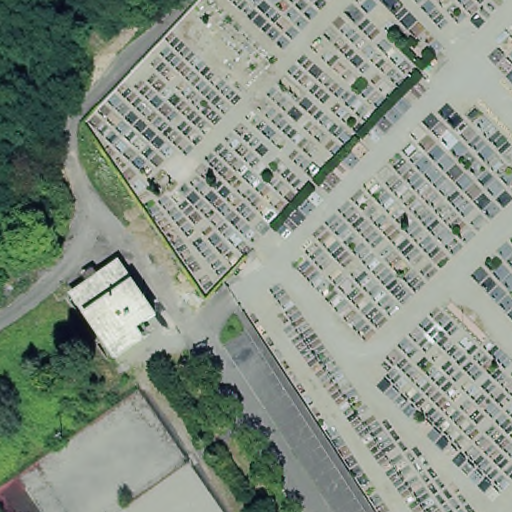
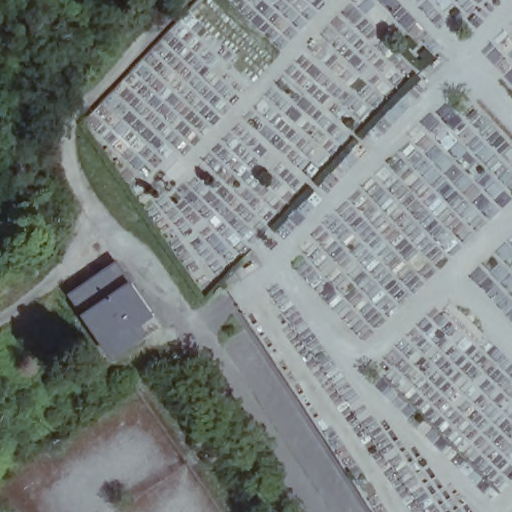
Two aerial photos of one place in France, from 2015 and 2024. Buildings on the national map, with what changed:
unchanged [(117,261),(154,315),(135,328),(142,338),(115,357),(71,294),(117,261)]

